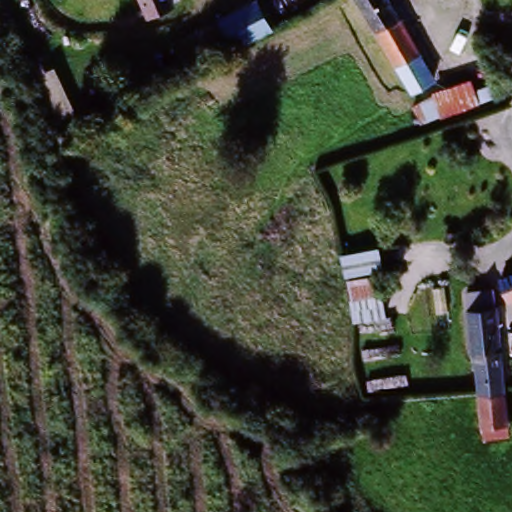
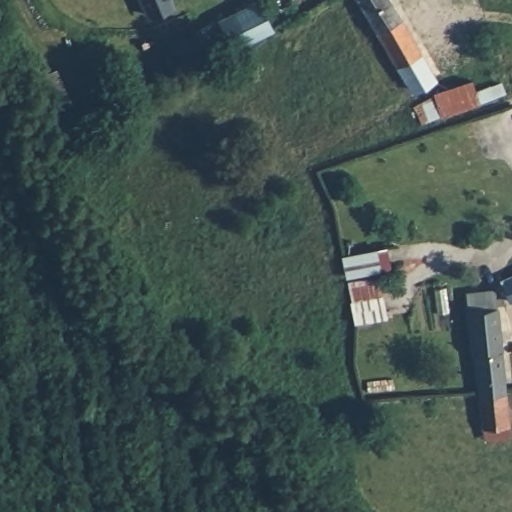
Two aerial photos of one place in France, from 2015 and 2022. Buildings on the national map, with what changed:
unchanged [(254,0),(291,0),(295,7),(210,50),(198,28),(254,0)]
unchanged [(405,92),(356,0),(388,0),(430,79),(405,92)]
unchanged [(410,102),(471,76),(473,89),(500,77),(505,90),(418,122),(410,102)]
unchanged [(370,273),(342,278),(338,254),(379,247),(385,277),(370,279),(370,273)]
unchanged [(512,294),(507,296),(498,277),(512,271),(512,294)]
unchanged [(349,323),(342,278),(370,273),(370,279),(372,296),(384,293),(388,316),(349,323)]
unchanged [(477,412),(475,383),(472,341),(467,339),(462,289),(478,287),(480,297),(492,295),(500,380),(502,411),(477,412)]

